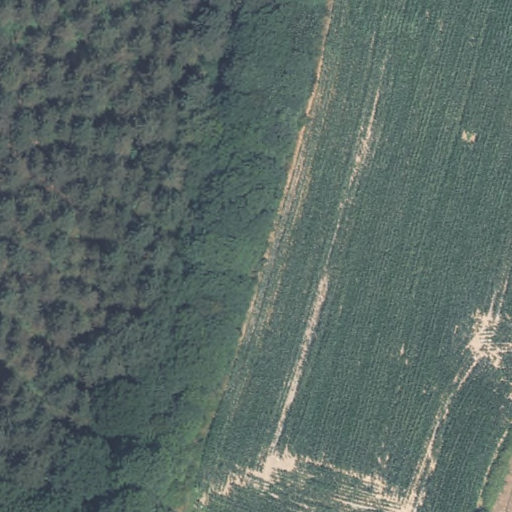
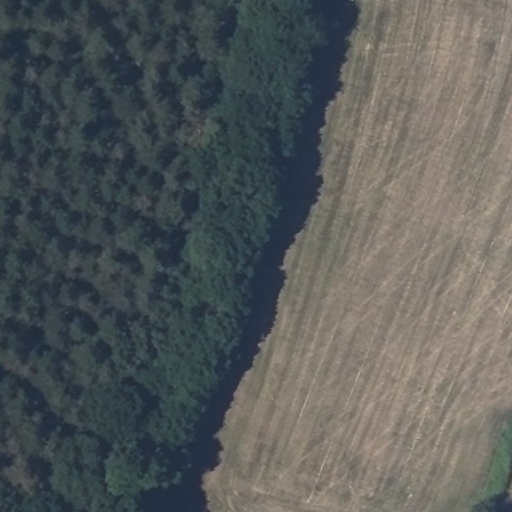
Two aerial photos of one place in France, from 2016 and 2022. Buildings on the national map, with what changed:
[]

